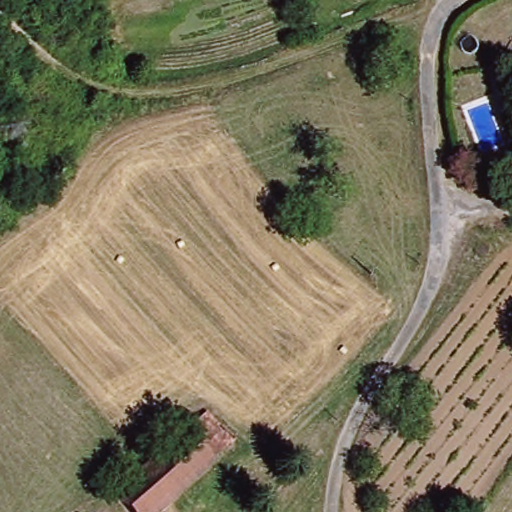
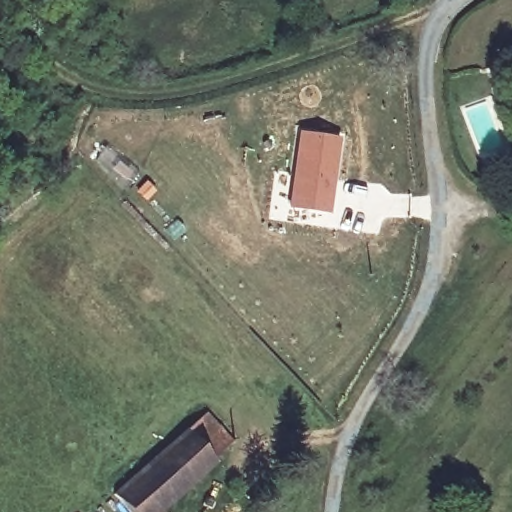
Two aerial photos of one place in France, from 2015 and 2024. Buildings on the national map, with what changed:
new [(298,129),(343,136),(331,214),(287,207),(298,129)]
unchanged [(116,502),(187,437),(206,419),(228,444),(209,461),(154,512),(126,512),(116,502)]

